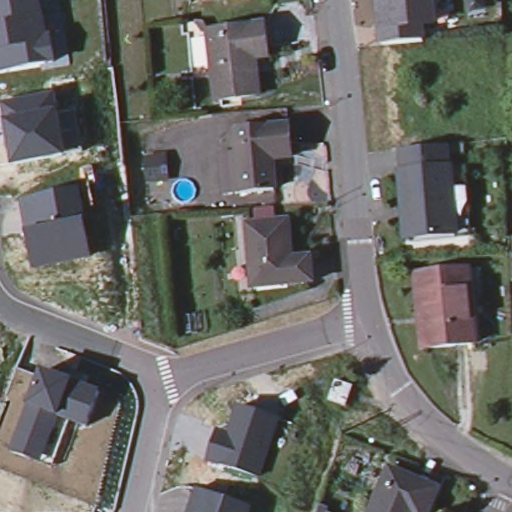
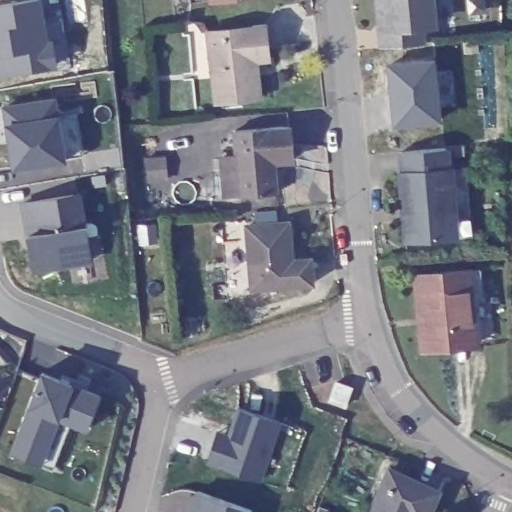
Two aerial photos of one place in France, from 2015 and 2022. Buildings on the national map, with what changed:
unchanged [(53,27),(58,63),(0,75),(0,0),(42,0),(45,28),(53,27)]
unchanged [(218,0),(207,2),(207,0),(218,0)]
unchanged [(432,0),(434,24),(420,25),(422,41),(383,45),(382,28),(390,27),(387,0),(432,0)]
unchanged [(204,29),(259,21),(262,44),(249,45),(254,92),(212,96),(204,29)]
new [(385,81),(383,62),(428,58),(434,117),(390,121),(387,92),(385,81)]
unchanged [(6,121),(3,104),(57,95),(60,113),(67,157),(14,168),(6,121)]
unchanged [(232,129),(285,125),(287,156),(270,158),(272,190),(237,192),(232,129)]
unchanged [(404,179),(402,157),(447,155),(448,176),(450,176),(456,244),(413,247),(407,247),(404,218),(401,180),(404,179)]
unchanged [(450,176),(466,175),(472,243),(456,244),(450,176)]
unchanged [(28,232),(22,202),(82,190),(85,220),(92,260),(35,271),(28,232)]
unchanged [(243,227),(285,225),(287,260),(306,260),(307,285),(248,288),(243,227)]
unchanged [(512,255),(512,282),(508,282),(507,255),(512,255)]
unchanged [(423,311),(421,311),(417,277),(467,272),(475,346),(425,351),(422,327),(425,327),(423,311)]
unchanged [(29,405),(42,371),(71,380),(100,393),(87,428),(59,418),(42,464),(12,452),(29,405)]
unchanged [(331,380),(346,387),(340,404),(325,398),(331,380)]
unchanged [(220,430),(227,433),(237,407),(280,420),(262,477),(208,465),(220,430)]
unchanged [(388,472),(435,491),(426,512),(371,512),(388,472)]
unchanged [(197,495),(252,510),(251,512),(190,512),(197,495)]

